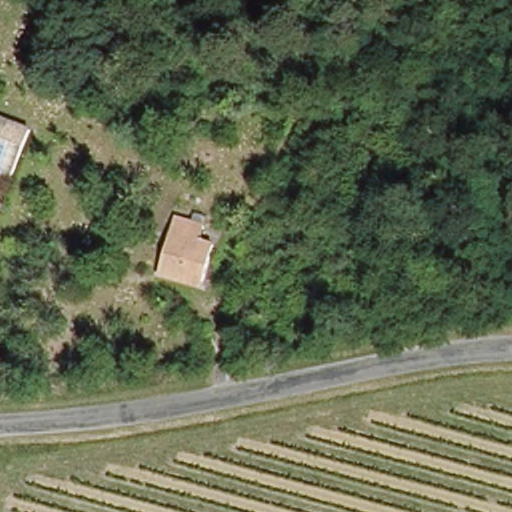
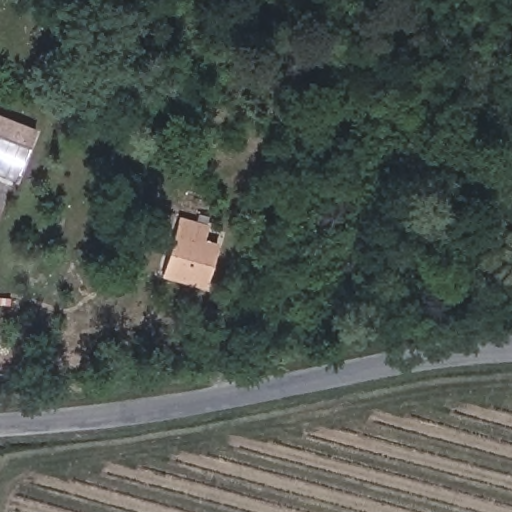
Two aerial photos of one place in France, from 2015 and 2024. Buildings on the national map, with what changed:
unchanged [(15,181),(0,175),(0,108),(35,120),(15,181)]
unchanged [(180,280),(157,272),(176,216),(205,226),(201,241),(214,246),(202,279),(200,286),(180,280)]

